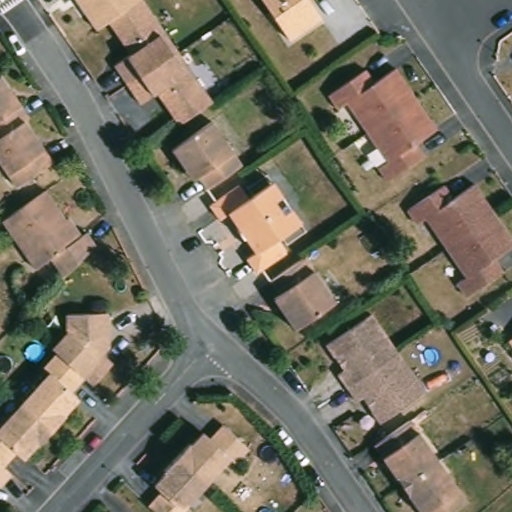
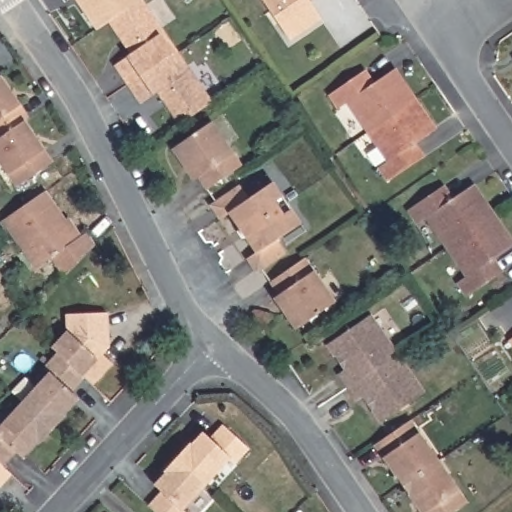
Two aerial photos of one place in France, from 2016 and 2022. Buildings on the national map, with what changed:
unchanged [(69,0),(138,0),(140,4),(108,26),(95,36),(69,0)]
unchanged [(260,0),(306,0),(319,18),(287,40),(260,0)]
unchanged [(108,26),(140,4),(176,55),(211,105),(179,128),(156,96),(140,107),(128,89),(114,69),(130,58),(108,26)]
unchanged [(345,106),(335,93),(366,72),(375,85),(397,70),(440,129),(418,144),(427,158),(394,180),(385,167),(398,157),(357,99),(345,106)]
unchanged [(1,78),(31,121),(24,125),(52,166),(18,190),(0,165),(0,79),(1,78)]
unchanged [(214,121),(243,164),(210,188),(201,175),(195,179),(175,147),(214,121)]
unchanged [(223,219),(213,205),(241,185),(249,196),(253,193),(258,200),(262,198),(265,202),(272,197),(283,213),(290,209),(300,224),(279,239),(288,252),(259,272),(250,259),(259,252),(233,213),(223,219)]
unchanged [(417,227),(406,212),(435,192),(445,206),(468,191),(507,246),(485,262),(495,278),(464,298),(454,283),(467,274),(428,219),(417,227)]
unchanged [(46,192),(66,226),(63,228),(73,246),(87,237),(94,249),(59,284),(48,263),(30,272),(3,223),(46,192)]
unchanged [(307,262),(333,301),(294,328),(274,298),(278,295),(271,285),(307,262)]
unchanged [(68,310),(111,309),(112,328),(108,328),(109,351),(105,356),(116,366),(96,387),(89,380),(59,353),(53,346),(68,331),(68,310)]
unchanged [(373,318),(398,355),(349,389),(341,376),(348,370),(340,356),(336,359),(329,348),(373,318)]
unchanged [(512,345),(510,342),(512,341),(512,345)]
unchanged [(52,371),(47,367),(59,353),(89,380),(72,396),(70,406),(75,409),(67,418),(70,420),(58,433),(24,402),(52,371)]
unchanged [(425,395),(381,424),(374,413),(376,411),(367,398),(359,403),(349,389),(398,355),(425,395)]
unchanged [(24,402),(58,433),(46,446),(43,444),(34,454),(31,451),(19,454),(8,469),(0,462),(0,428),(24,402)]
unchanged [(418,512),(402,489),(374,448),(409,423),(425,448),(437,465),(445,478),(465,507),(457,512),(418,512)]
unchanged [(191,451),(198,442),(213,440),(225,428),(250,451),(236,466),(230,461),(207,485),(183,510),(184,512),(154,512),(151,509),(160,499),(161,484),(168,475),(165,473),(178,459),(187,448),(191,451)]
unchanged [(8,469),(11,472),(0,484),(0,462),(8,469)]

